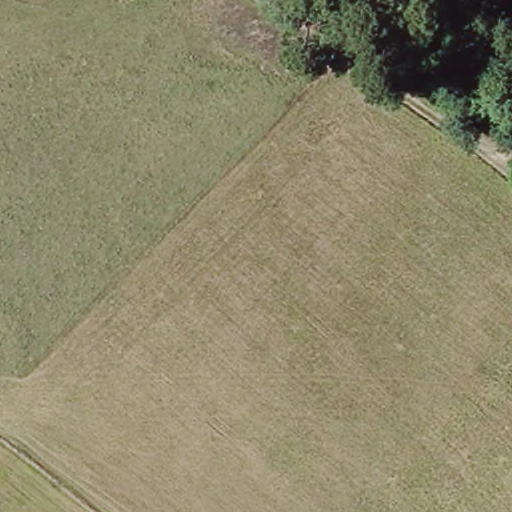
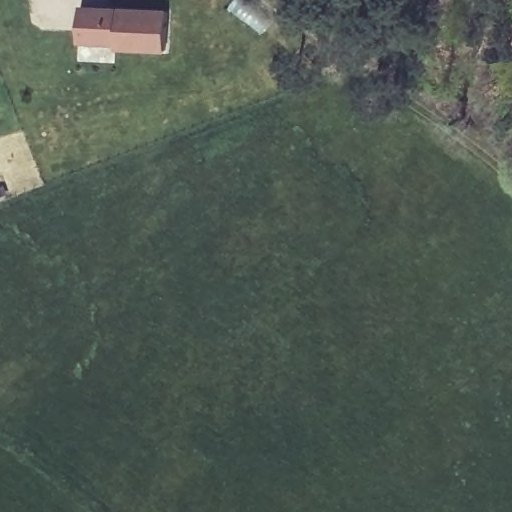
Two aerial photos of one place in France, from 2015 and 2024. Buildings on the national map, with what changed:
new [(166,53),(115,51),(116,45),(80,42),(82,4),(168,8),(166,53)]

